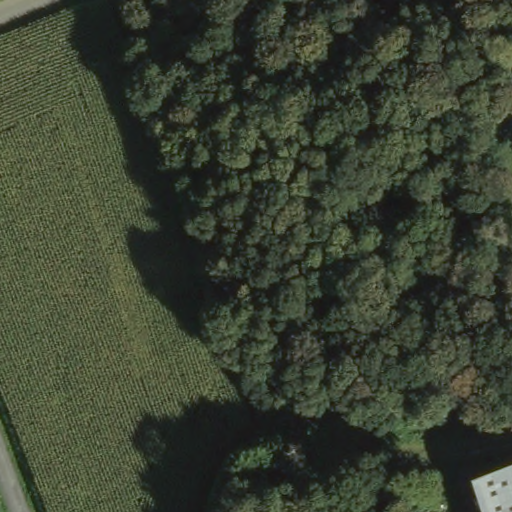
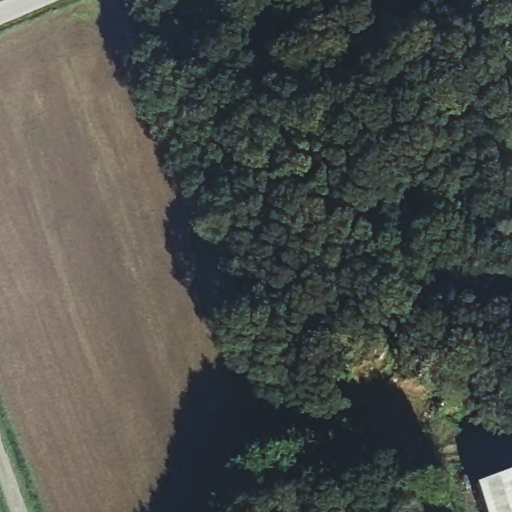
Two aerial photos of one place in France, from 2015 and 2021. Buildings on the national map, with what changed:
unchanged [(474,489),(512,478),(512,512),(482,512),(474,489)]

